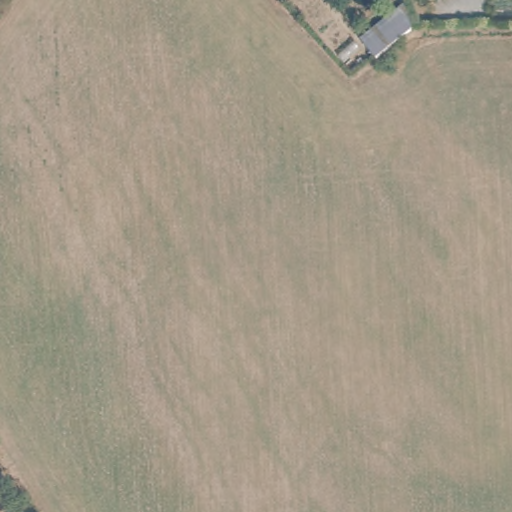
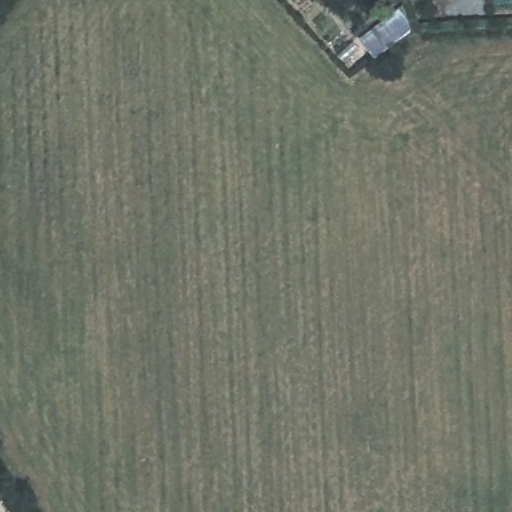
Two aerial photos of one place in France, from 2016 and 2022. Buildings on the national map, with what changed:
unchanged [(362,40),(398,12),(410,30),(374,59),(362,40)]

